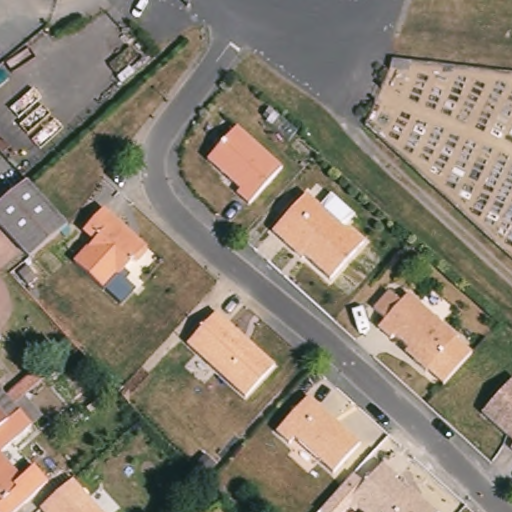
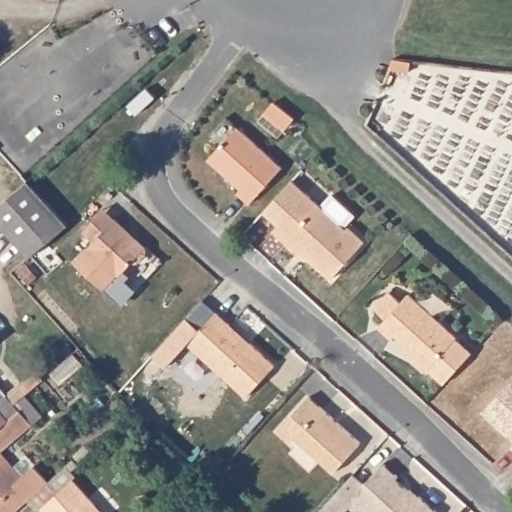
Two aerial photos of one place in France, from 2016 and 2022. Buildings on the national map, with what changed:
unchanged [(293,167),(262,204),(250,193),(252,189),(219,160),(247,127),(293,167)]
unchanged [(71,227),(28,257),(0,227),(0,200),(24,178),(71,227)]
unchanged [(347,232),(350,228),(367,244),(325,285),(268,237),(303,197),(347,232)]
unchanged [(150,254),(137,268),(130,261),(127,263),(131,268),(104,292),(72,263),(91,243),(81,233),(102,211),(150,254)]
unchanged [(436,321),(440,319),(460,340),(423,378),(407,361),(410,357),(401,346),(397,349),(377,331),(386,320),(373,310),(388,293),(401,304),(410,294),(436,321)]
unchanged [(271,369),(242,398),(188,347),(216,315),(271,369)]
unchanged [(0,344),(0,332),(6,339),(0,344)]
unchanged [(512,379),(512,437),(507,437),(481,414),(512,379)]
unchanged [(22,405),(16,412),(0,426),(0,382),(16,399),(22,405)]
unchanged [(361,444),(327,477),(293,444),(287,448),(273,433),(307,398),(361,444)]
unchanged [(27,424),(0,450),(0,426),(16,412),(27,424)]
unchanged [(511,449),(512,447),(512,449),(511,449)]
unchanged [(31,467),(46,482),(13,512),(0,512),(0,457),(20,477),(31,467)]
unchanged [(435,511),(434,512),(361,512),(346,499),(378,462),(393,475),(391,477),(405,490),(402,492),(410,499),(415,494),(435,511)]
unchanged [(40,510),(73,479),(101,512),(42,512),(40,510)]

